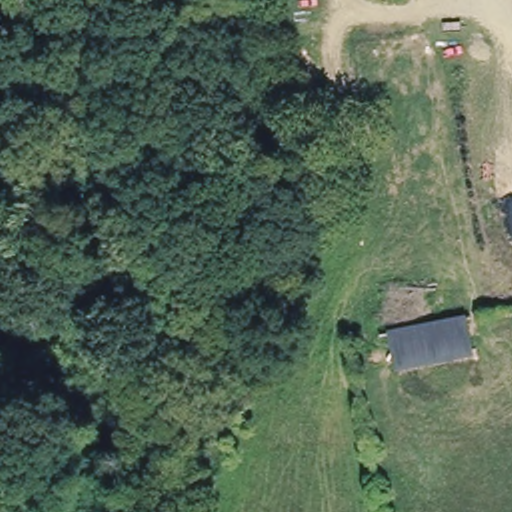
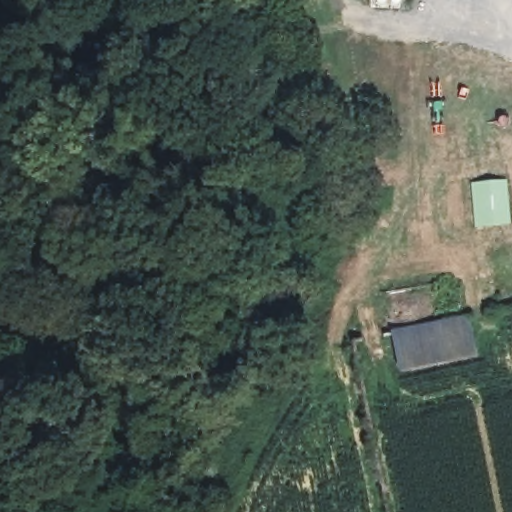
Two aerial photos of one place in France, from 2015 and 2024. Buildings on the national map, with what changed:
new [(507,177),(511,222),(474,226),(469,180),(507,177)]
unchanged [(402,367),(394,330),(472,315),(479,352),(402,367)]

